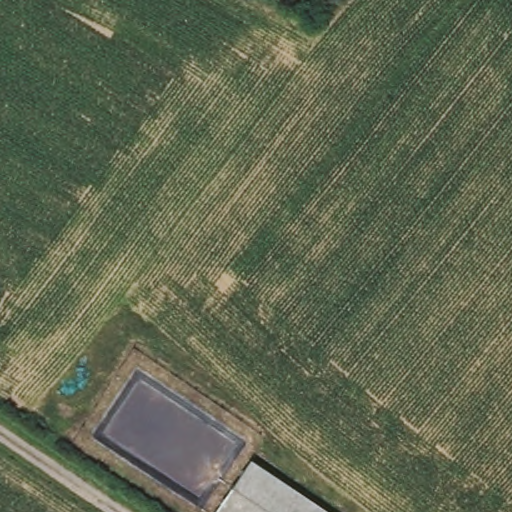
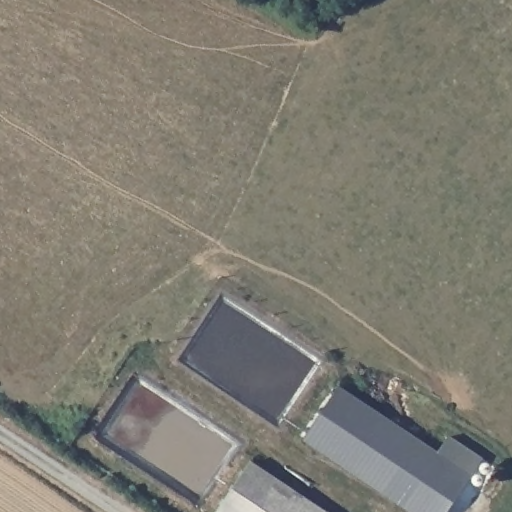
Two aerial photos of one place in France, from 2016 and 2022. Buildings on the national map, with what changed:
new [(437,453),(448,436),(482,459),(448,512),(414,512),(304,438),(338,387),(437,453)]
unchanged [(218,512),(252,463),(324,512),(218,512)]

